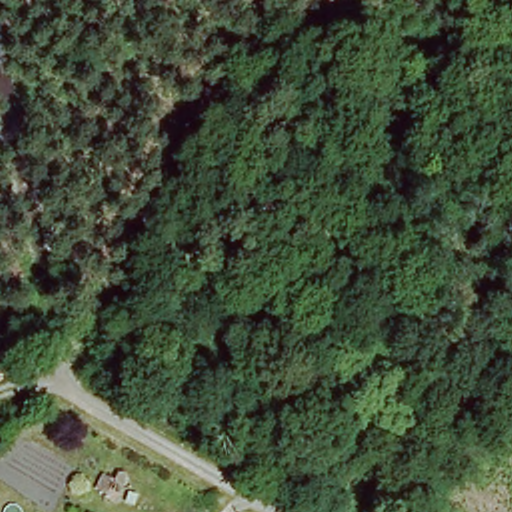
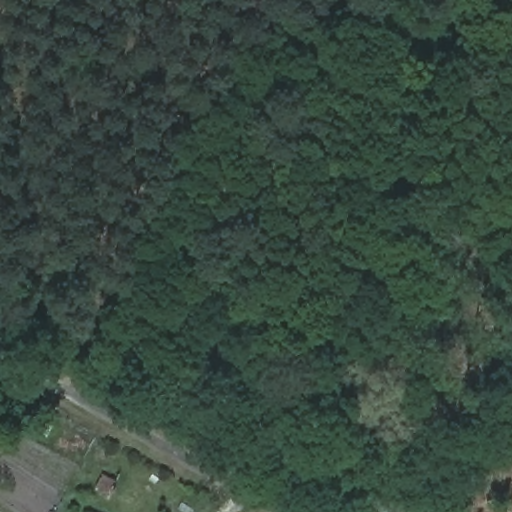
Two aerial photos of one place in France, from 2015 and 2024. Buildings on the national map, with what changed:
unchanged [(141,509),(106,493),(114,477),(147,494),(141,509)]
unchanged [(185,512),(169,512),(174,505),(185,512)]

